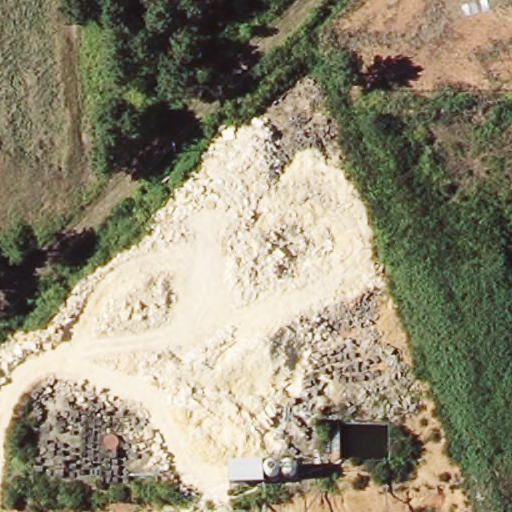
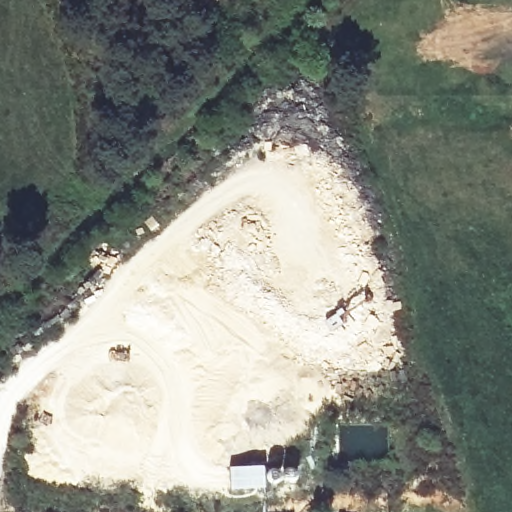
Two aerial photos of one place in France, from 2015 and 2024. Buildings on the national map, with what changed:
unchanged [(292,477),(230,481),(230,465),(292,462),(292,477)]

